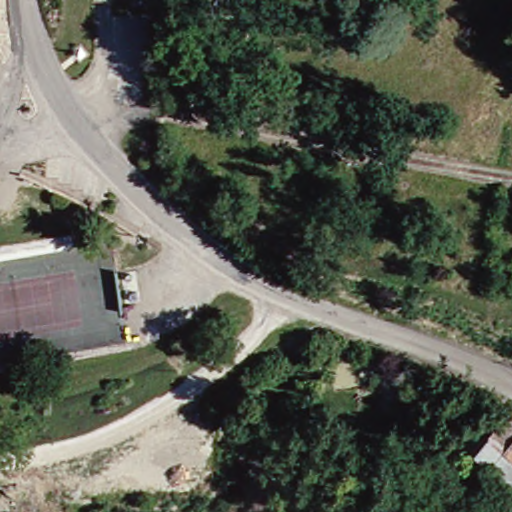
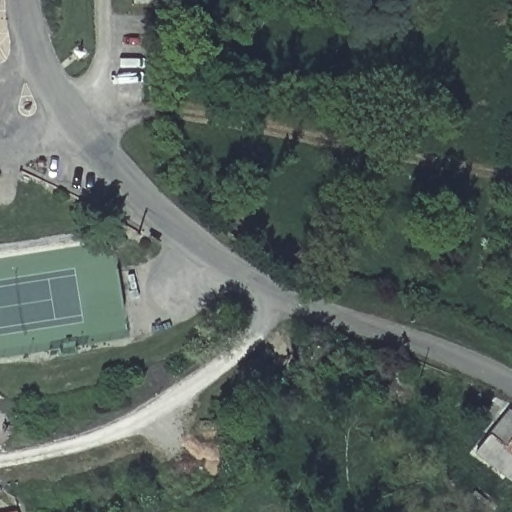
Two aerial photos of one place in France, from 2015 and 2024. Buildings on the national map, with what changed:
unchanged [(510,418),(512,419),(512,468),(485,446),(510,418)]

